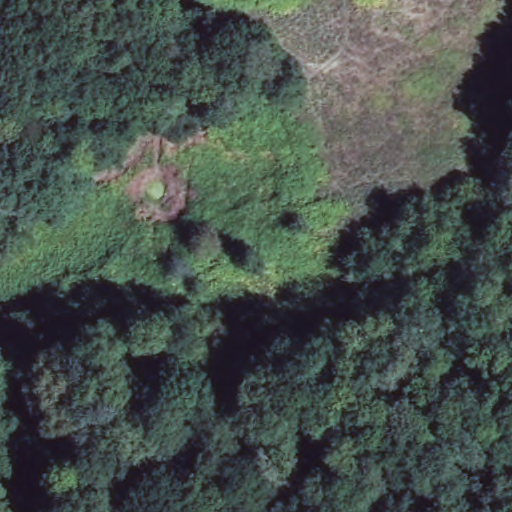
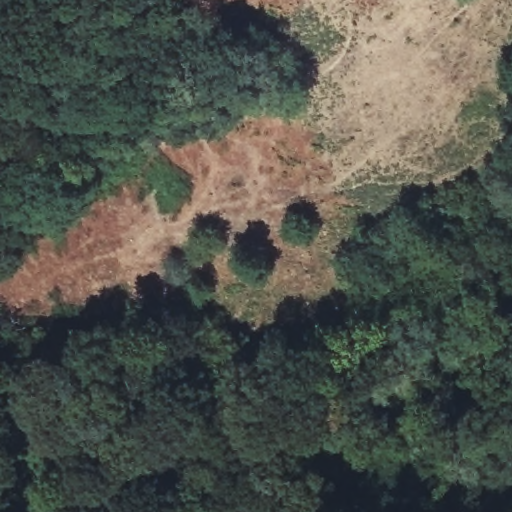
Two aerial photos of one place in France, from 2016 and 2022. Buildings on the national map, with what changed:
[]

